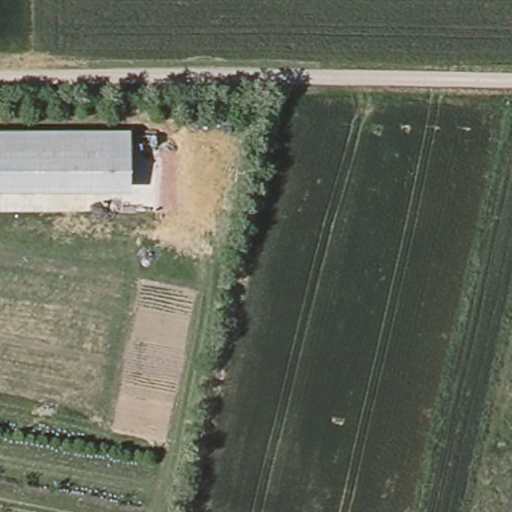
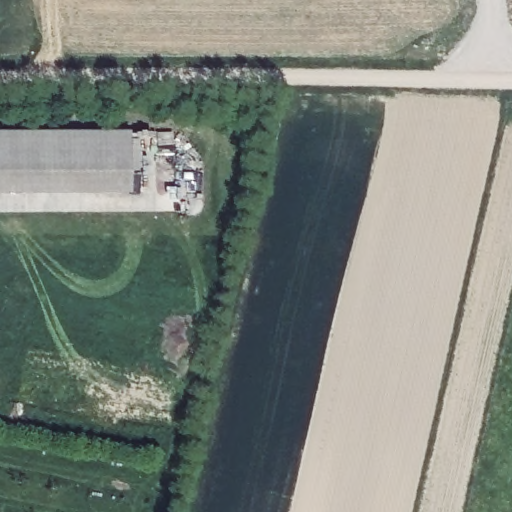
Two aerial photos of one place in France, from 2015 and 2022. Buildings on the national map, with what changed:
unchanged [(133,193),(0,195),(0,133),(133,131),(133,193)]

